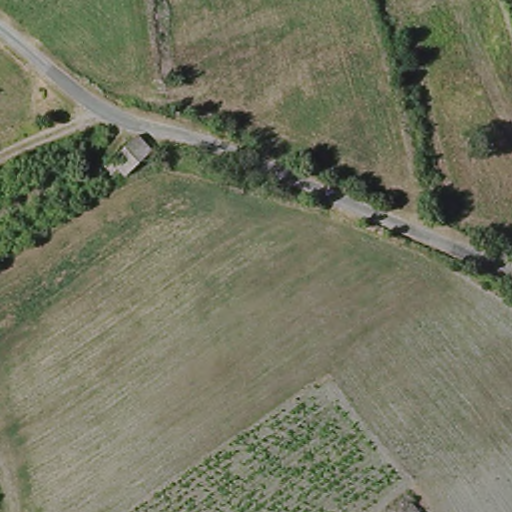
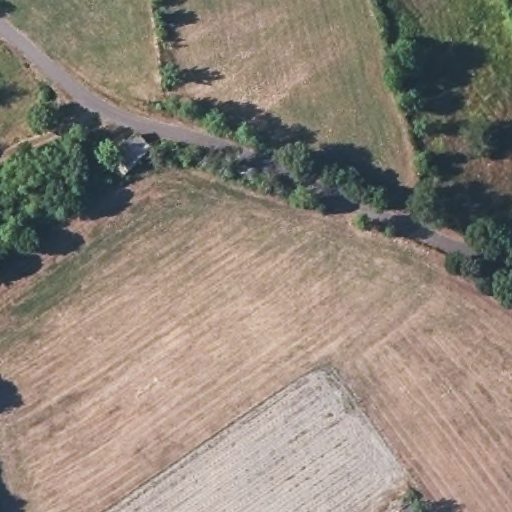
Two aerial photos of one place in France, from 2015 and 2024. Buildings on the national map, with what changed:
unchanged [(126,170),(116,178),(108,167),(115,161),(142,141),(156,153),(132,174),(126,170)]
unchanged [(420,512),(403,512),(413,504),(420,512)]

